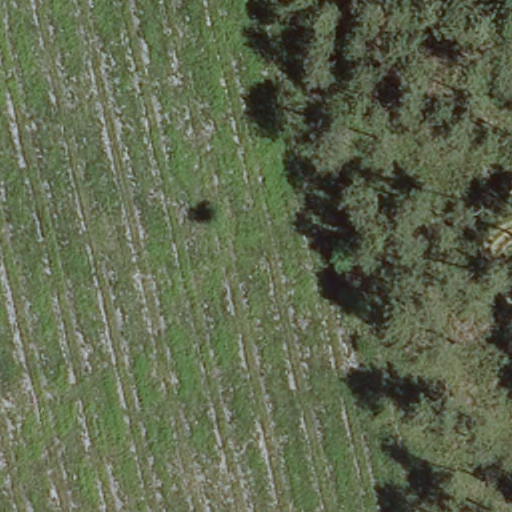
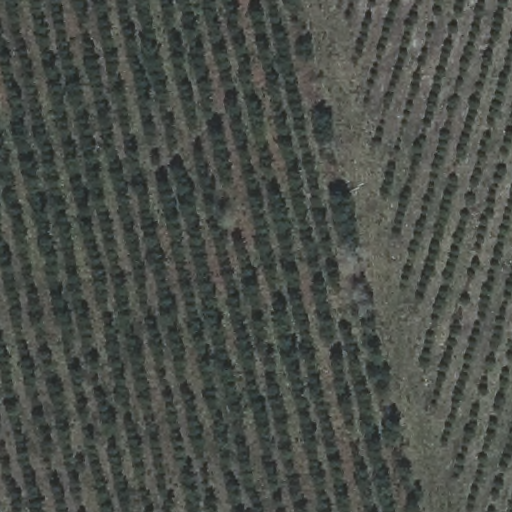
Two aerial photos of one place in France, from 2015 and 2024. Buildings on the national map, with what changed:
[]

